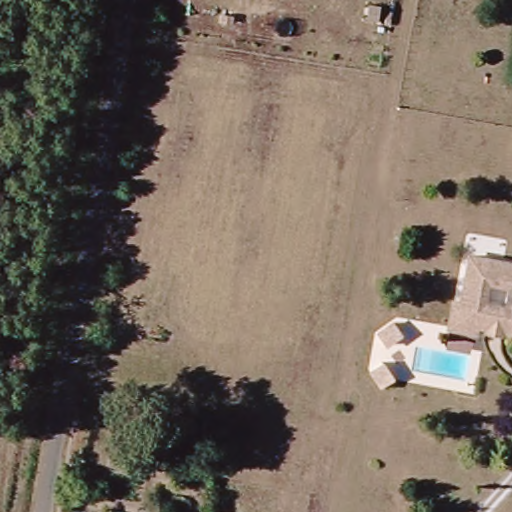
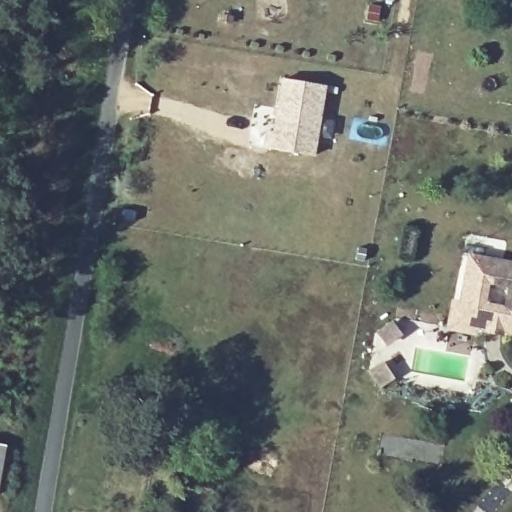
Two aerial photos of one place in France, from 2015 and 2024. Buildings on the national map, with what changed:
new [(314,156),(263,149),(265,130),(274,132),(282,78),(327,85),(314,156)]
unchanged [(447,324),(451,300),(457,302),(468,254),(512,263),(512,328),(472,322),(471,328),(447,324)]
unchanged [(392,321),(401,331),(386,343),(378,334),(392,321)]
unchanged [(393,378),(382,386),(371,368),(382,361),(393,378)]
new [(3,494),(0,494),(0,443),(10,444),(3,494)]

